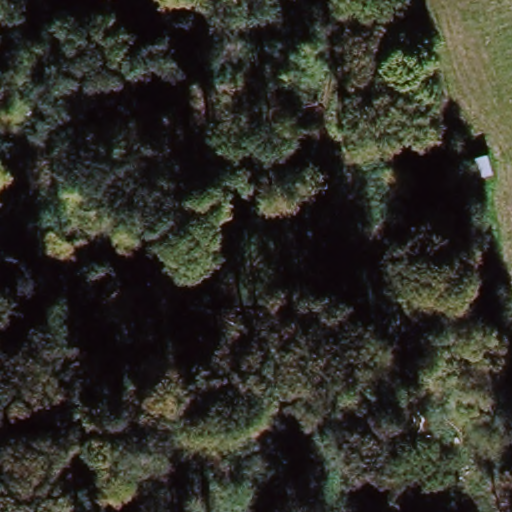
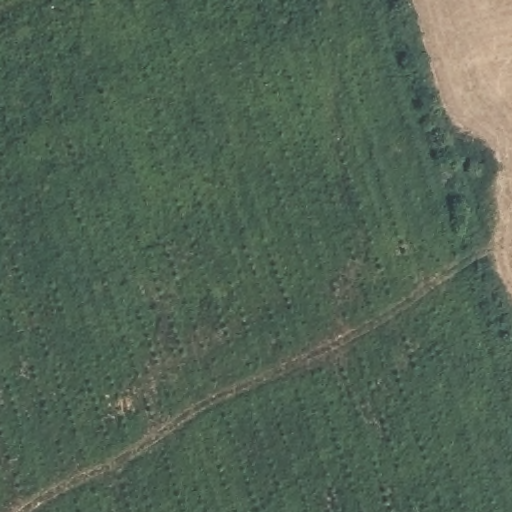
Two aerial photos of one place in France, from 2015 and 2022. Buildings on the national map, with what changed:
unchanged [(491,173),(474,178),(467,159),(484,154),(491,173)]

